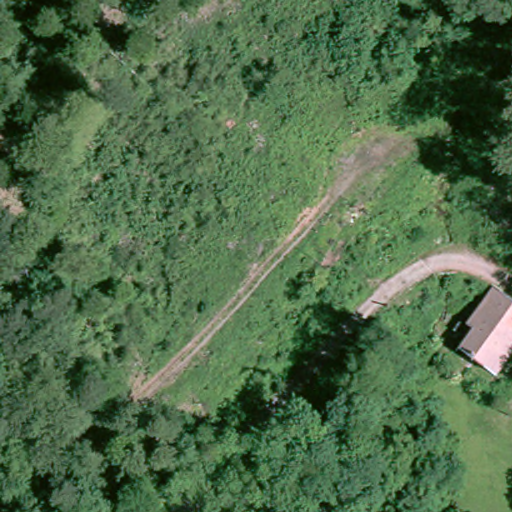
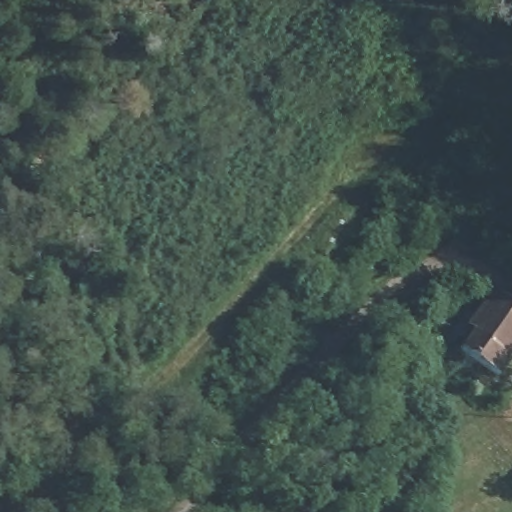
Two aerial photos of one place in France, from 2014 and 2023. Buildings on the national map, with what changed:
unchanged [(479,358),(474,366),(462,359),(462,346),(473,326),(467,322),(492,287),(512,301),(512,354),(500,372),(479,358)]

